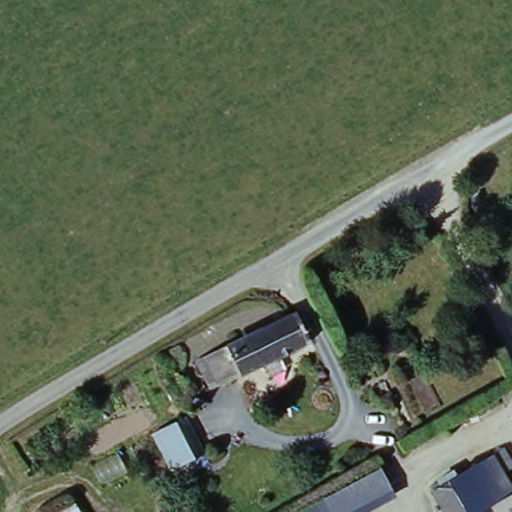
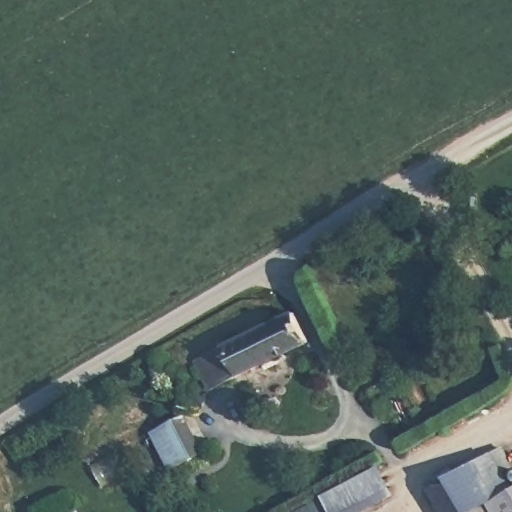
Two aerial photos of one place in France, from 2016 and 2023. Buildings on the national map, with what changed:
unchanged [(487,327),(468,338),(454,312),(473,301),(487,327)]
unchanged [(298,312),(312,339),(212,386),(198,359),(298,312)]
unchanged [(150,434),(183,418),(205,454),(170,471),(150,434)]
unchanged [(484,457),(506,492),(479,509),(457,474),(484,457)]
unchanged [(397,493),(365,512),(298,512),(384,465),(397,493)]
unchanged [(457,474),(479,509),(474,512),(437,512),(425,494),(457,474)]
unchanged [(512,500),(506,492),(512,488),(512,500)]
unchanged [(512,512),(481,512),(479,509),(506,492),(512,500),(512,512)]
unchanged [(81,512),(51,512),(71,497),(81,512)]
unchanged [(481,512),(474,512),(479,509),(481,512)]

